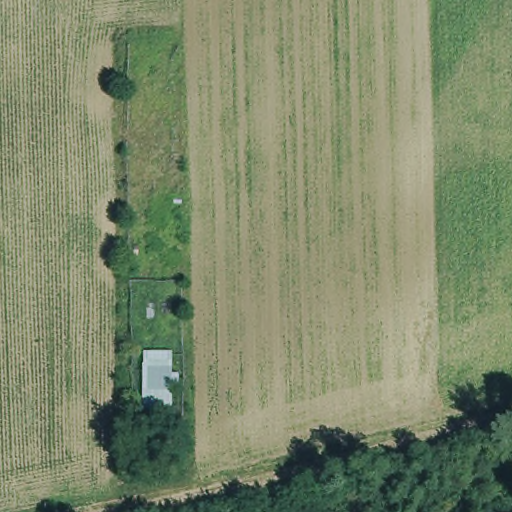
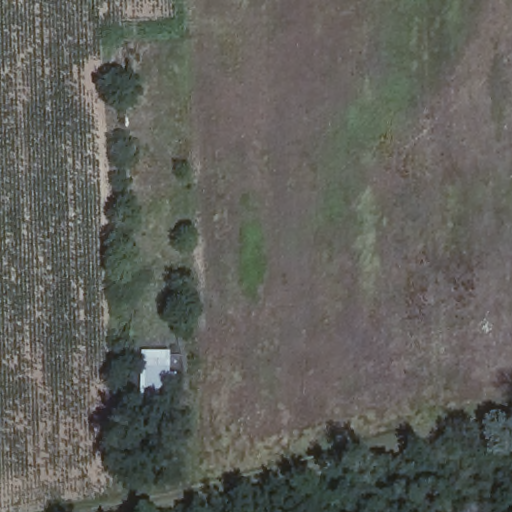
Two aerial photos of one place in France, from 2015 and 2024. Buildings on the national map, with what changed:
unchanged [(168,417),(141,419),(142,352),(169,352),(168,417)]

